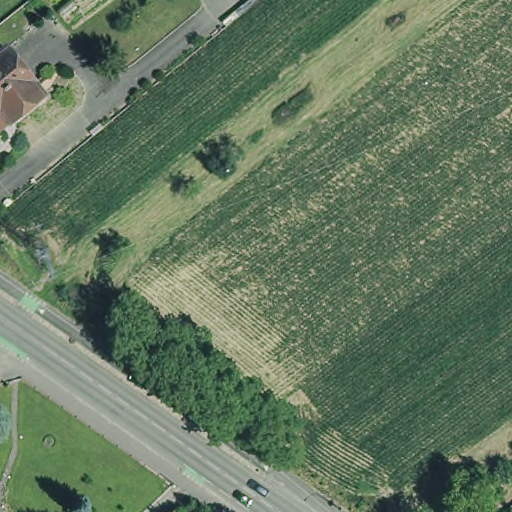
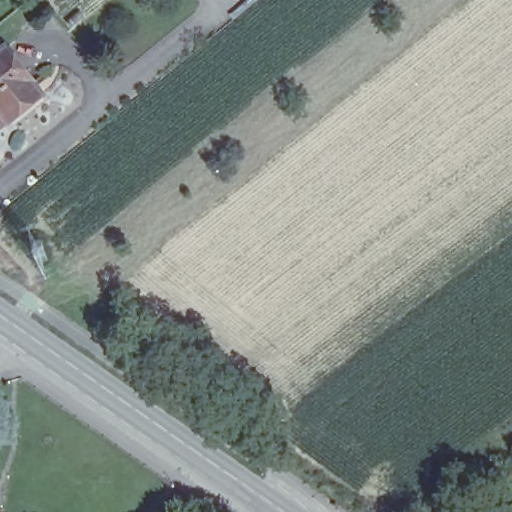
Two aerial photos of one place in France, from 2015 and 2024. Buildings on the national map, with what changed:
unchanged [(25,70),(38,86),(7,112),(0,104),(0,42),(2,40),(6,46),(25,70)]

